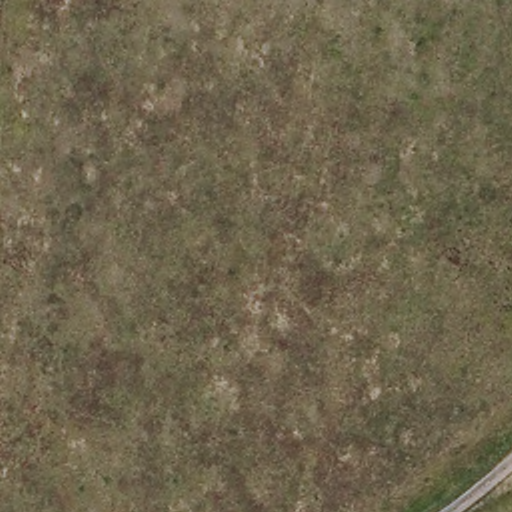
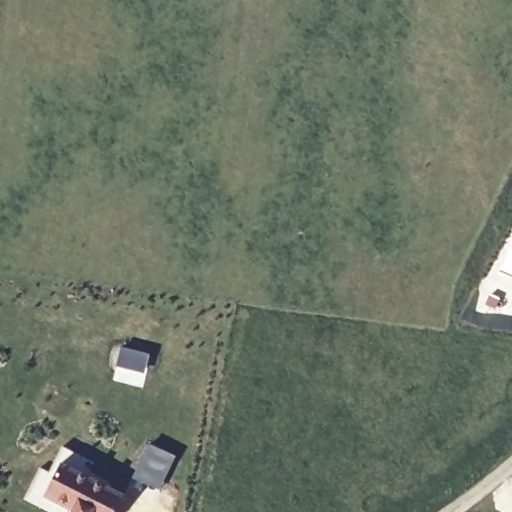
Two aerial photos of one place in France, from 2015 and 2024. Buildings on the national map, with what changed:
new [(147,441),(176,455),(160,490),(130,477),(147,441)]
new [(124,493),(115,512),(66,512),(41,497),(60,458),(124,493)]

